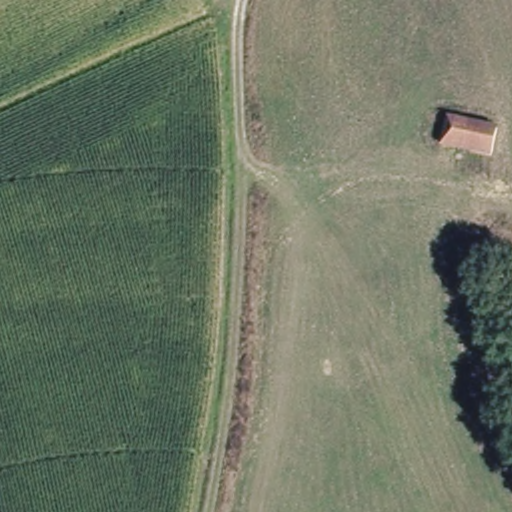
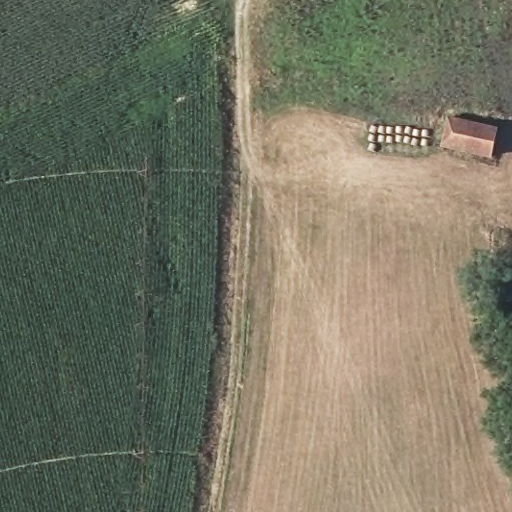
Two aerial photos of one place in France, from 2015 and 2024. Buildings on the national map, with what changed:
unchanged [(498,130),(490,160),(436,149),(446,116),(498,130)]

